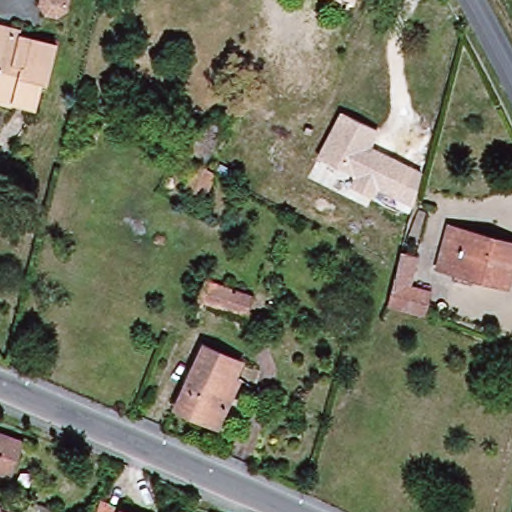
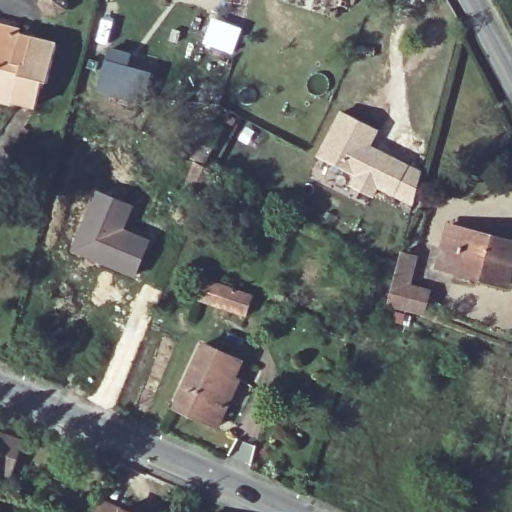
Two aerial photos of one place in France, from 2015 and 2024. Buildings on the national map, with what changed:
unchanged [(46,85),(38,83),(31,108),(0,101),(0,32),(56,45),(46,85)]
new [(150,74),(145,91),(135,83),(114,94),(99,89),(112,48),(131,54),(127,67),(150,74)]
unchanged [(380,128),(372,145),(422,169),(415,206),(378,189),(373,199),(347,188),(353,175),(316,157),(340,110),(380,128)]
new [(224,128),(221,135),(205,166),(194,160),(185,156),(201,125),(209,129),(213,123),(224,128)]
new [(195,164),(214,171),(204,195),(186,187),(195,164)]
unchanged [(236,194),(245,164),(257,168),(248,200),(236,194)]
new [(95,189),(135,204),(126,227),(151,239),(135,279),(68,251),(95,189)]
unchanged [(512,248),(512,261),(504,288),(435,268),(445,228),(512,248)]
unchanged [(394,265),(395,256),(413,261),(407,290),(427,296),(422,317),(384,307),(394,265)]
unchanged [(248,301),(243,322),(196,307),(203,286),(248,301)]
unchanged [(224,399),(232,402),(220,428),(174,408),(202,346),(239,362),(224,399)]
unchanged [(11,480),(0,477),(0,441),(21,448),(11,480)]
unchanged [(124,512),(96,512),(99,500),(124,512)]

